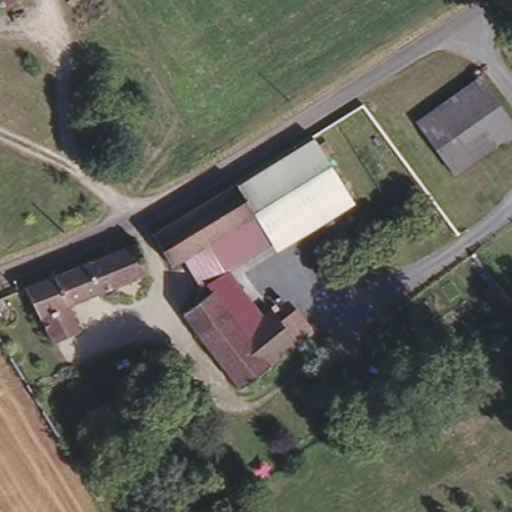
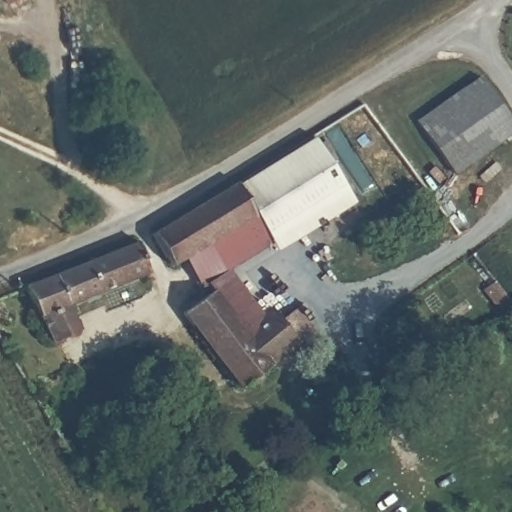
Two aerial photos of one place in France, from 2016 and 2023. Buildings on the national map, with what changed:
unchanged [(4,4),(1,0),(11,0),(4,4)]
unchanged [(453,179),(414,122),(480,74),(512,120),(512,141),(453,179)]
unchanged [(350,189),(282,230),(265,204),(266,201),(249,173),(312,133),(350,189)]
unchanged [(189,250),(175,260),(161,227),(168,222),(249,173),(266,201),(265,204),(189,250)]
unchanged [(238,258),(215,273),(206,279),(189,250),(265,204),(282,230),(238,258)]
unchanged [(145,273),(65,308),(74,334),(53,341),(26,289),(138,239),(145,273)]
unchanged [(266,308),(244,325),(227,294),(215,273),(238,258),(266,308)]
unchanged [(239,388),(195,312),(227,294),(244,325),(266,308),(276,304),(287,322),(302,313),(315,335),(239,388)]
unchanged [(156,376),(172,410),(160,416),(144,381),(156,376)]

